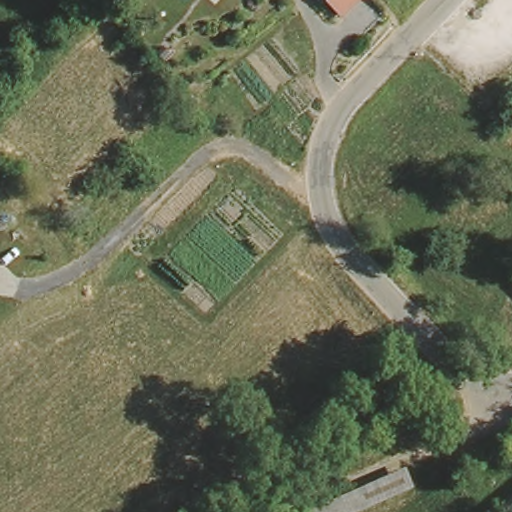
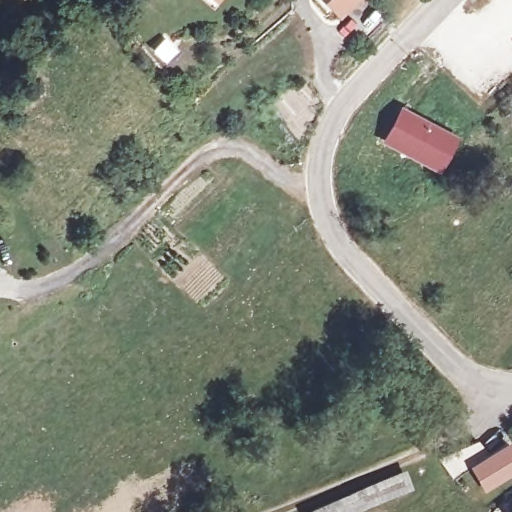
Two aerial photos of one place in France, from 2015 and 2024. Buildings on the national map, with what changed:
unchanged [(327,0),(360,0),(341,15),(327,0)]
new [(402,104),(463,138),(442,175),(382,141),(402,104)]
new [(489,454),(512,440),(512,441),(512,475),(485,490),(472,470),(454,478),(439,458),(480,442),(489,454)]
unchanged [(412,471),(423,488),(365,512),(312,512),(412,471)]

